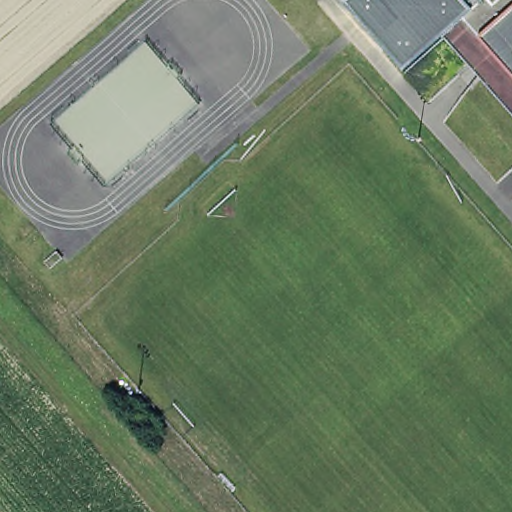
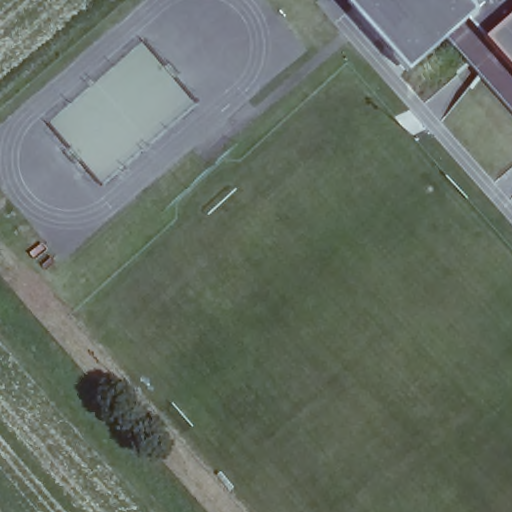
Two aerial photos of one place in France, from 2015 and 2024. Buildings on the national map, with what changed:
unchanged [(404,75),(373,40),(374,39),(345,6),(352,0),(407,0),(444,40),(404,75)]
unchanged [(463,24),(444,40),(407,0),(512,0),(512,79),(463,24)]

